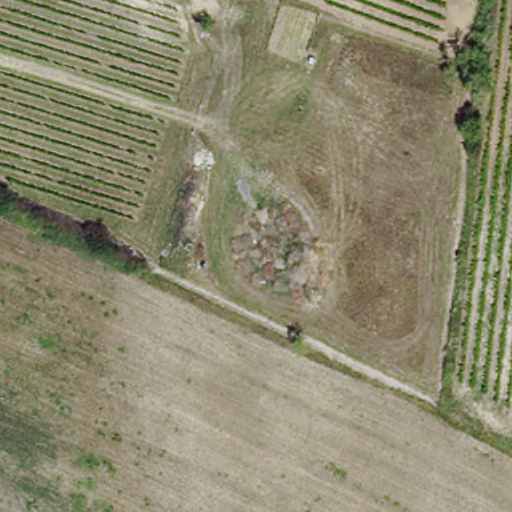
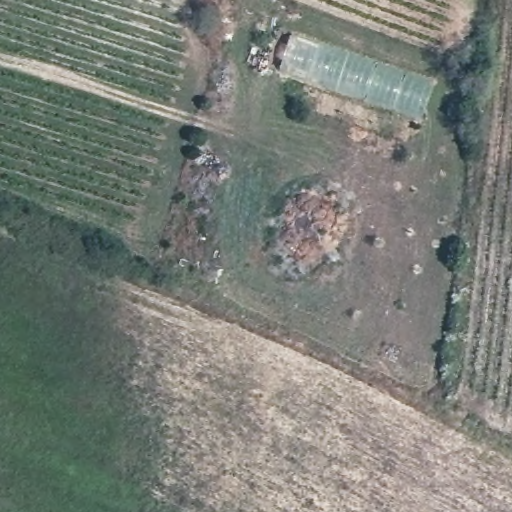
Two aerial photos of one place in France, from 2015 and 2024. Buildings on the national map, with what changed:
new [(288,35),(432,82),(422,115),(278,66),(288,35)]

